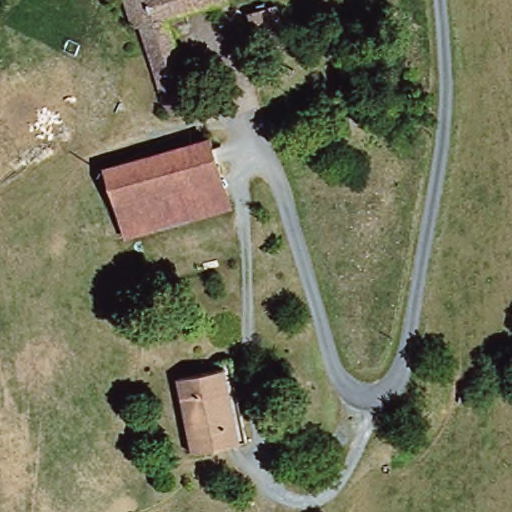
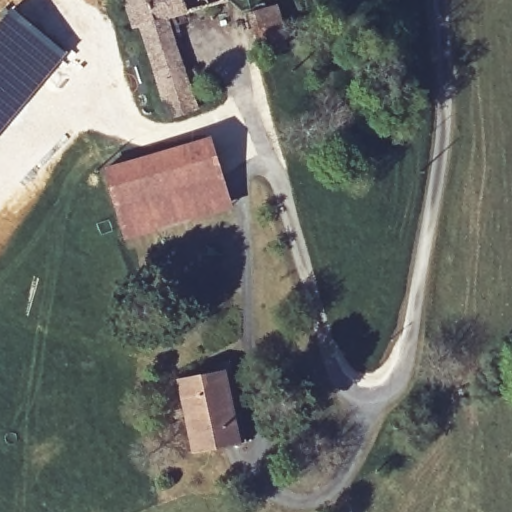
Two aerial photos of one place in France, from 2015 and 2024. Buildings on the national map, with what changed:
unchanged [(171,16),(200,106),(169,116),(140,25),(131,29),(122,0),(224,0),(171,16)]
new [(66,52),(42,86),(0,139),(0,18),(10,6),(66,52)]
unchanged [(287,46),(259,55),(248,15),(275,7),(287,46)]
unchanged [(330,128),(327,110),(365,103),(368,121),(330,128)]
unchanged [(104,170),(205,139),(217,176),(116,208),(104,170)]
new [(24,165),(11,181),(15,185),(16,184),(20,189),(0,208),(0,151),(3,148),(24,165)]
unchanged [(116,208),(217,176),(220,189),(226,209),(126,240),(120,221),(116,208)]
unchanged [(190,458),(175,386),(210,380),(208,371),(228,367),(245,447),(190,458)]

